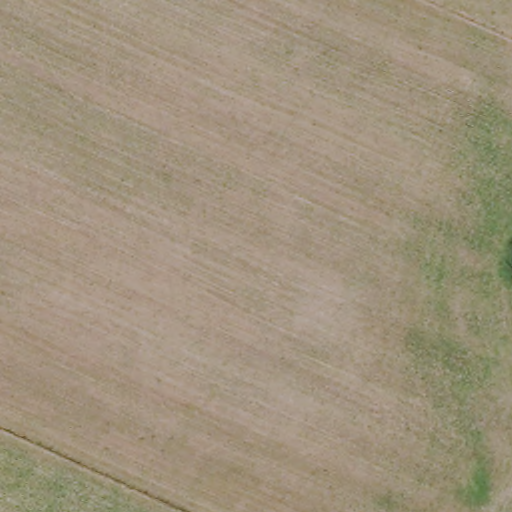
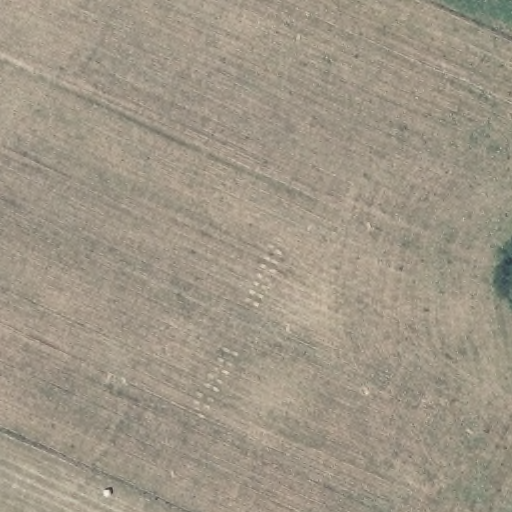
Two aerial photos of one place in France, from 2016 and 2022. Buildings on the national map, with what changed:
[]

